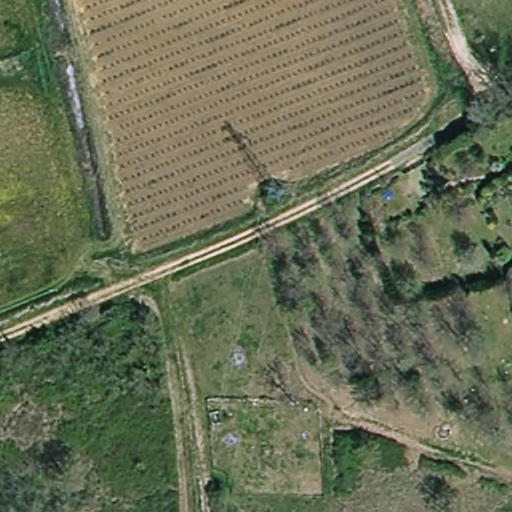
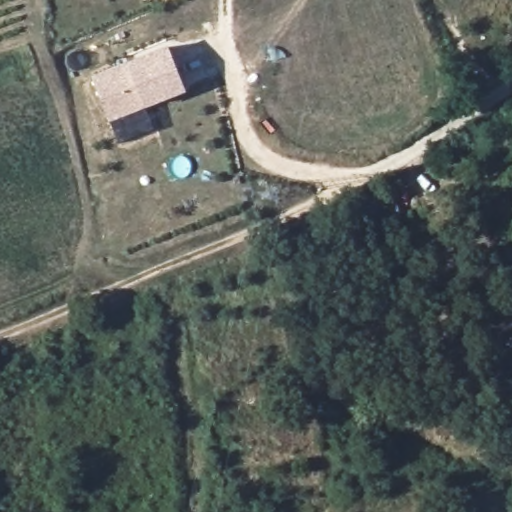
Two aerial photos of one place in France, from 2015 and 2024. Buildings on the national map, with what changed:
new [(169,45),(188,91),(146,107),(110,120),(93,75),(127,62),(169,45)]

